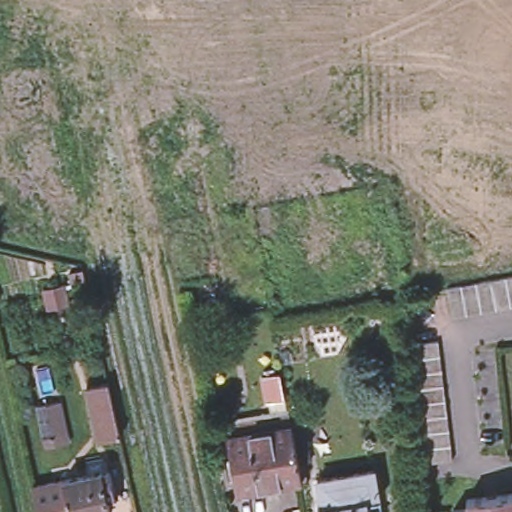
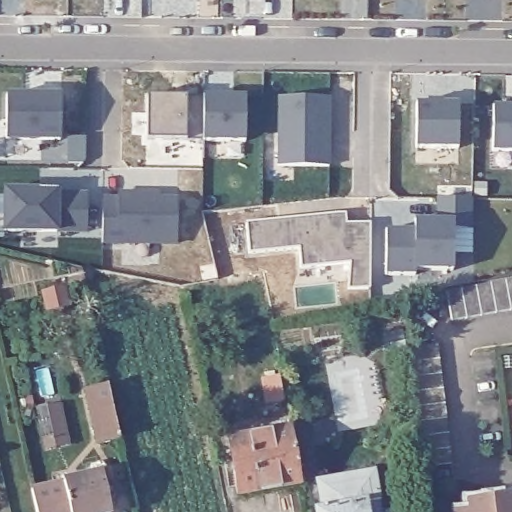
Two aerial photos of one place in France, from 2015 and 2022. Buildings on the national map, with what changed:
new [(279,97),(330,97),(330,165),(278,165),(279,97)]
new [(7,99),(62,100),(61,143),(6,143),(7,99)]
new [(147,99),(203,100),(202,144),(147,143),(147,99)]
new [(202,144),(203,100),(221,100),(221,102),(233,103),(233,100),(246,100),(245,145),(202,145),(202,144)]
new [(505,111),(505,103),(512,103),(512,156),(492,155),(492,111),(505,111)]
new [(416,107),(427,107),(427,105),(429,105),(428,110),(441,110),(441,105),(442,105),(442,107),(459,108),(457,152),(416,152),(416,107)]
new [(6,194),(40,194),(40,193),(58,193),(58,198),(88,198),(87,235),(6,234),(6,194)]
new [(103,202),(118,202),(118,197),(132,197),(132,203),(177,203),(177,247),(150,247),(150,244),(120,244),(121,246),(102,246),(103,202)]
new [(414,234),(414,229),(414,224),(431,224),(436,224),(437,202),(472,203),(471,233),(454,233),(453,274),(415,274),(415,279),(385,279),(386,234),(414,234)]
new [(300,246),(249,251),(246,222),(345,212),(346,223),(370,223),(370,288),(347,289),(350,261),(301,268),(300,246)]
unchanged [(512,278),(512,310),(452,320),(447,290),(512,278)]
unchanged [(452,461),(422,464),(407,347),(436,344),(452,461)]
unchanged [(284,402),(270,404),(266,380),(280,378),(284,402)]
unchanged [(121,440),(99,445),(87,387),(107,383),(121,440)]
unchanged [(59,405),(66,437),(53,440),(46,408),(59,405)]
unchanged [(227,442),(292,430),(302,428),(310,464),(299,466),(302,484),(237,496),(227,442)]
unchanged [(115,470),(119,487),(110,489),(115,511),(110,512),(76,512),(69,480),(115,470)]
unchanged [(372,473),(377,502),(379,512),(321,512),(316,483),(372,473)]
unchanged [(69,480),(76,512),(42,512),(36,487),(69,480)]
unchanged [(467,505),(467,495),(512,490),(512,512),(454,512),(453,506),(467,505)]

